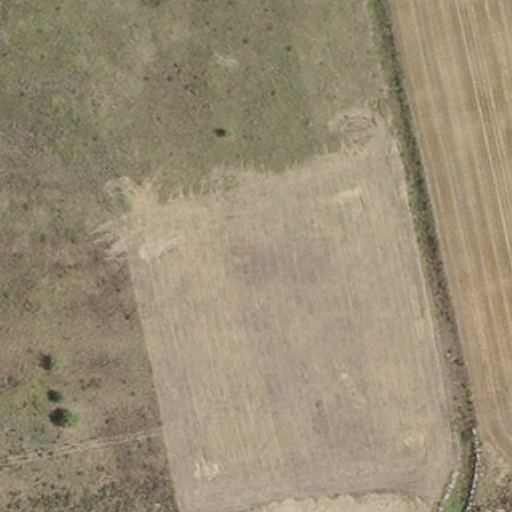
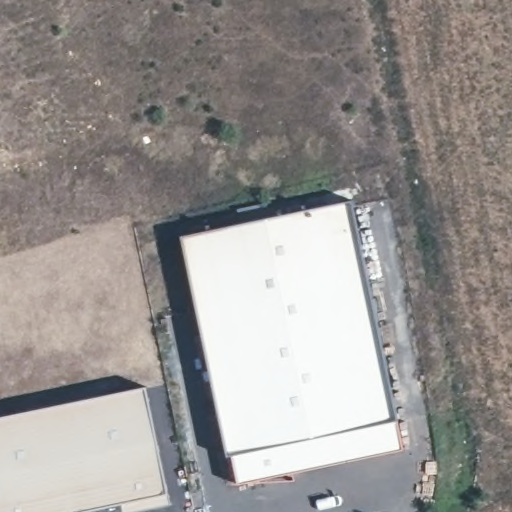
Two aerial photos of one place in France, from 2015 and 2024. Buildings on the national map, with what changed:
new [(351,204),(403,450),(240,483),(188,236),(351,204)]
new [(170,488),(65,512),(0,512),(0,414),(146,382),(170,488)]

